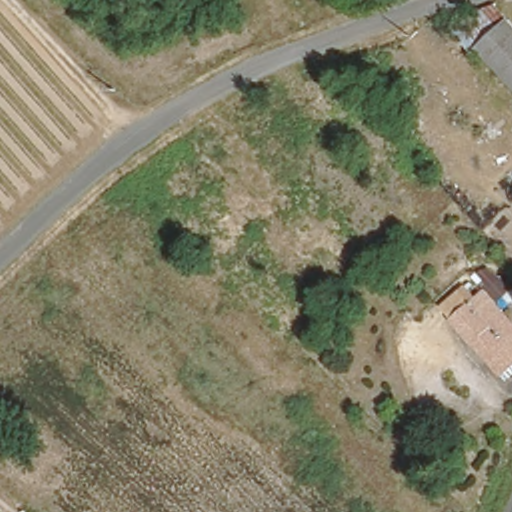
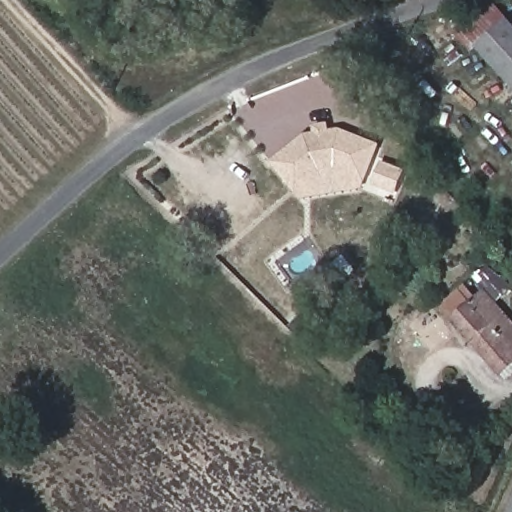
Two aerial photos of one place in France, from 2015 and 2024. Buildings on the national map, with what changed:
unchanged [(507,24),(512,29),(512,78),(482,45),(507,24)]
new [(366,180),(337,167),(320,171),(297,189),(277,162),(307,136),(341,131),(378,146),(366,180)]
unchanged [(458,295),(467,306),(478,298),(512,334),(512,369),(504,376),(442,310),(458,295)]

